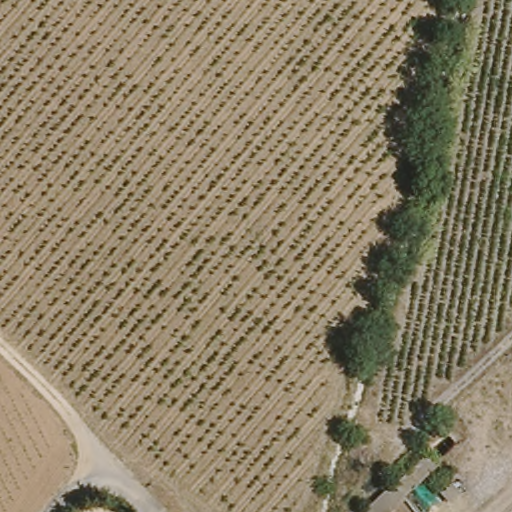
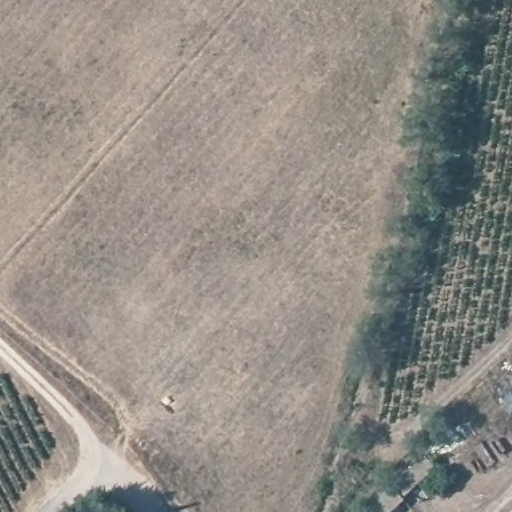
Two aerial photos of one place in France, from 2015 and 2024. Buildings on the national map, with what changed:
unchanged [(419,463),(429,474),(395,503),(397,505),(389,512),(363,512),(372,504),(419,463)]
unchanged [(459,479),(468,489),(445,508),(436,498),(459,479)]

